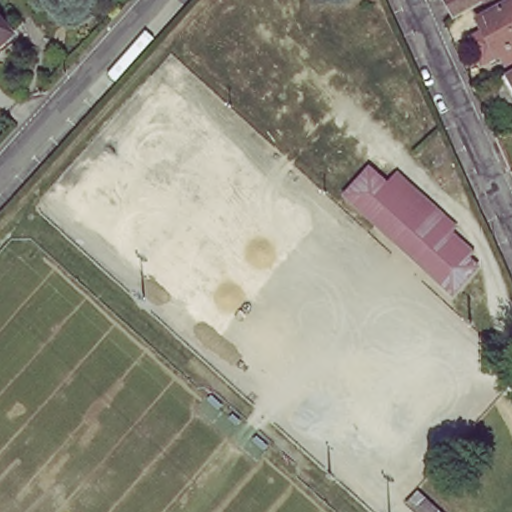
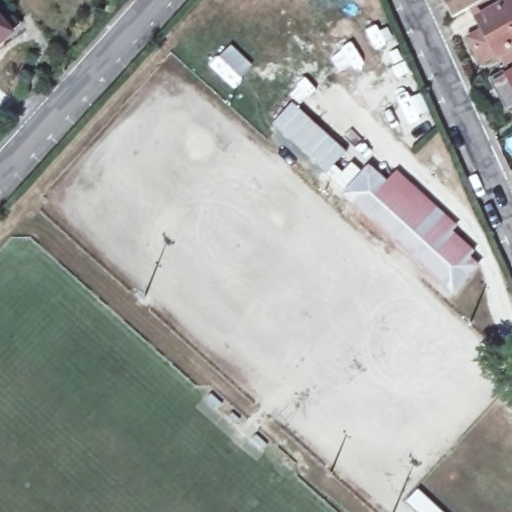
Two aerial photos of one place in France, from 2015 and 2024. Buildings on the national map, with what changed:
unchanged [(470,7),(451,17),(441,0),(485,0),(470,7)]
unchanged [(483,32),(470,7),(485,0),(512,0),(512,46),(494,55),(488,42),(481,46),(476,37),(483,32)]
unchanged [(16,29),(0,42),(0,10),(16,29)]
unchanged [(512,76),(512,91),(506,79),(512,76)]
new [(326,174),(273,126),(293,104),(346,152),(326,174)]
unchanged [(390,173),(407,187),(424,204),(449,226),(444,231),(467,251),(459,260),(465,266),(443,290),(416,265),(413,262),(412,259),(413,252),(403,242),(399,244),(396,244),(394,243),(390,240),(365,217),(372,207),(361,197),(352,188),(366,172),(376,182),(379,185),(390,173)]
unchanged [(442,512),(416,512),(401,498),(412,486),(442,512)]

